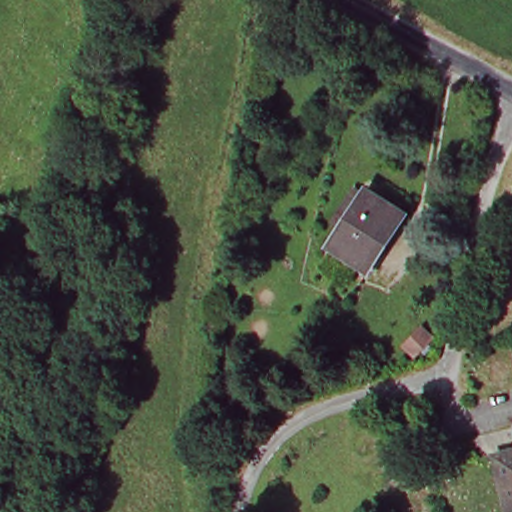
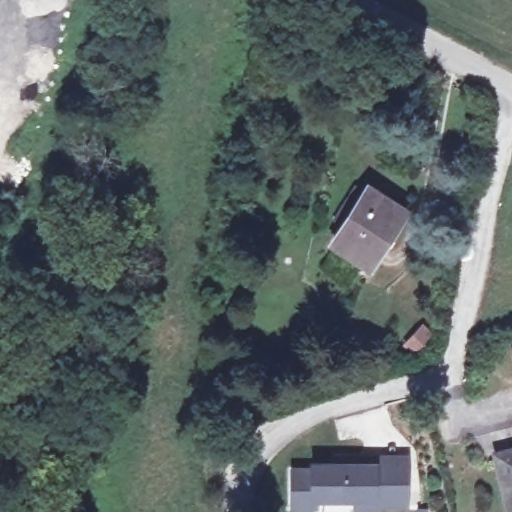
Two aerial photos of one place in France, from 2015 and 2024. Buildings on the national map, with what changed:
unchanged [(401,214),(372,268),(334,242),(364,191),(401,214)]
unchanged [(429,337),(416,355),(405,347),(417,329),(429,337)]
unchanged [(511,429),(512,429),(512,434),(511,429)]
unchanged [(494,457),(512,453),(512,512),(506,512),(494,457)]
new [(310,500),(310,507),(289,507),(290,473),(310,474),(310,469),(334,469),(334,459),(349,460),(399,460),(399,470),(402,470),(401,507),(369,506),(369,509),(349,509),(349,500),(310,500)]

